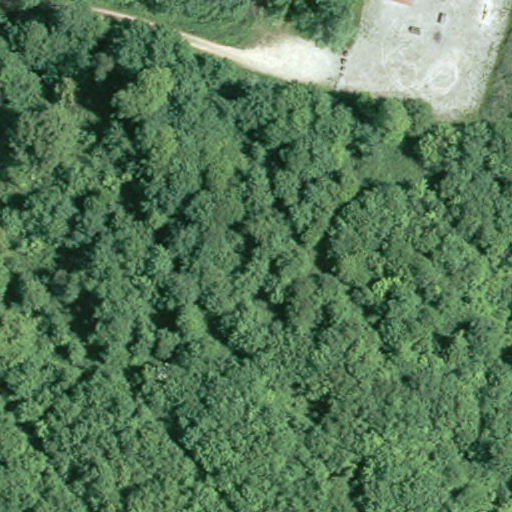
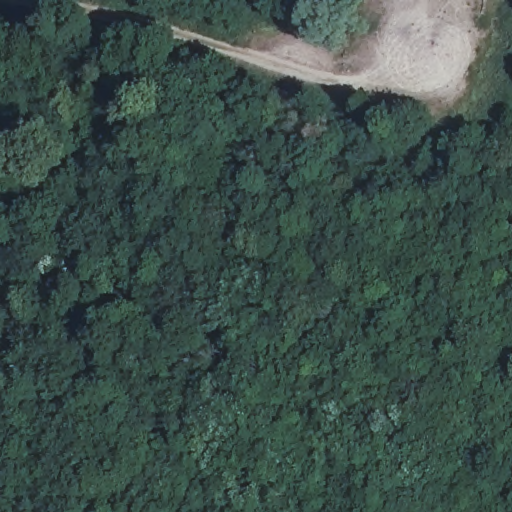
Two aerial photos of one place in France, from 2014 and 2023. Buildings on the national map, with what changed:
unchanged [(403,0),(411,0),(410,2),(403,0)]

